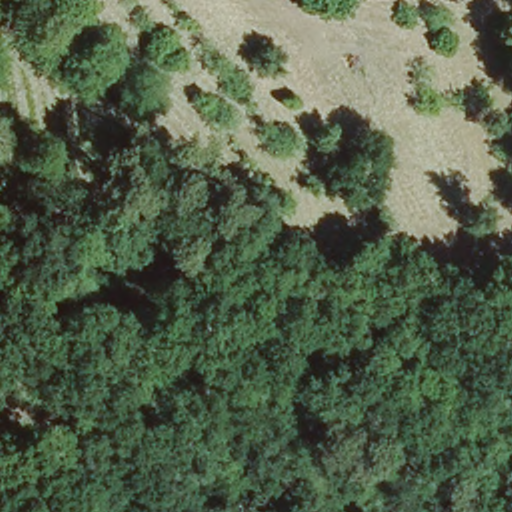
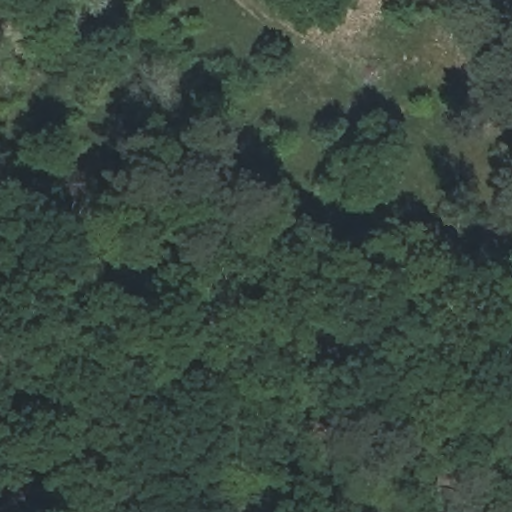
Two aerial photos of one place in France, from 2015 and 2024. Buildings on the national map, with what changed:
[]

